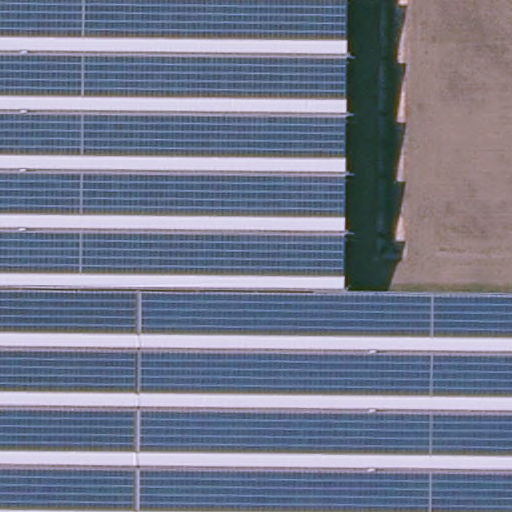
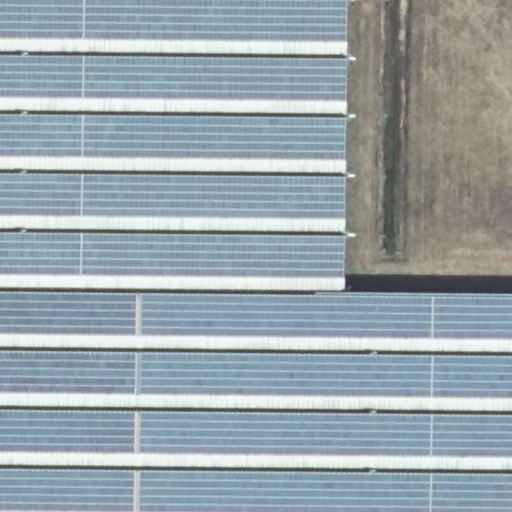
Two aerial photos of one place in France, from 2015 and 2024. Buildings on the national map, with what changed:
unchanged [(344,292),(512,294),(512,512),(0,512),(0,0),(347,0),(344,292)]

